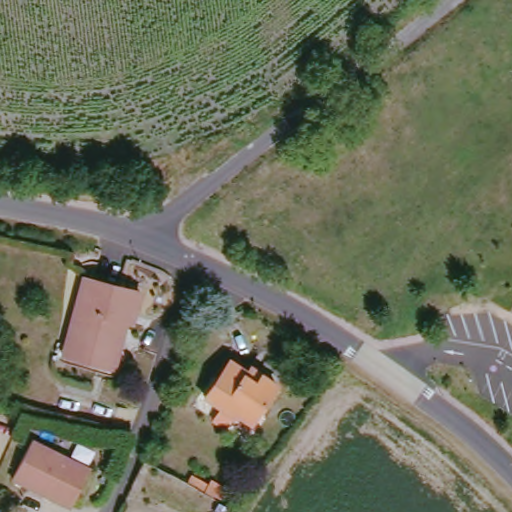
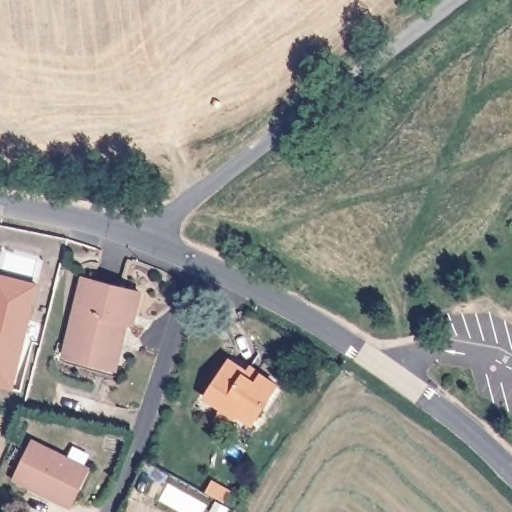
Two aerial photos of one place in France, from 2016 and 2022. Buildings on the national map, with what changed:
new [(11,388),(0,386),(0,276),(38,284),(11,388)]
unchanged [(73,312),(79,279),(136,291),(131,315),(129,322),(123,321),(111,370),(72,362),(61,360),(73,312)]
unchanged [(244,372),(249,366),(275,385),(248,423),(234,413),(231,417),(201,397),(228,360),(244,372)]
unchanged [(43,490),(10,476),(28,437),(87,461),(73,495),(70,501),(43,490)]
unchanged [(143,465),(153,469),(143,490),(134,486),(143,465)]

